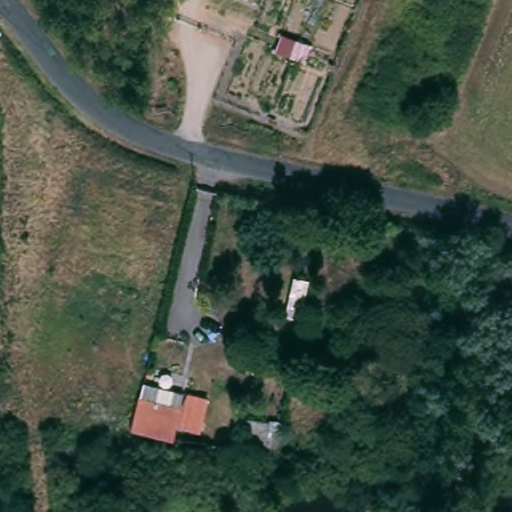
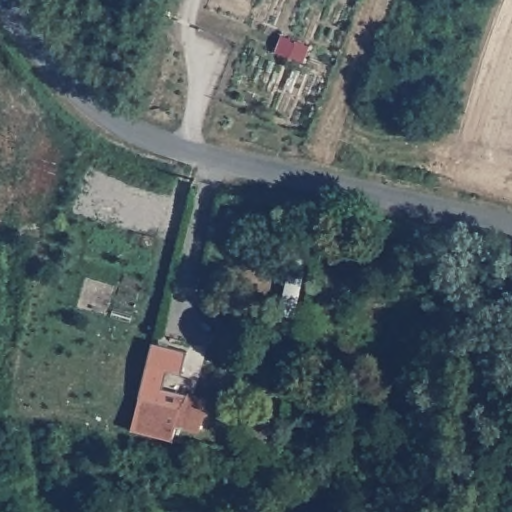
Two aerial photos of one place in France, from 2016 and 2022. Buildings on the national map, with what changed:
unchanged [(137,429),(143,401),(146,387),(188,393),(186,407),(191,393),(211,396),(208,424),(184,420),(181,434),(137,429)]

